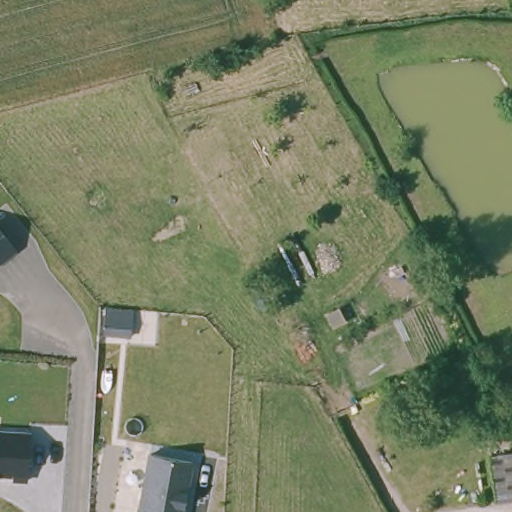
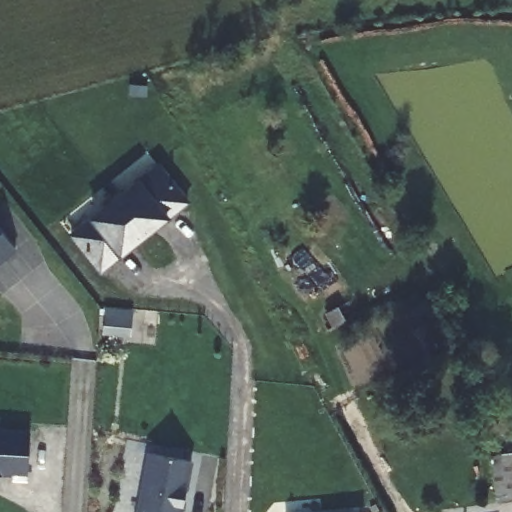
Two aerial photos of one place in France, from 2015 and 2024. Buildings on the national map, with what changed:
new [(70,241),(159,170),(190,206),(100,277),(70,241)]
unchanged [(0,263),(0,228),(17,250),(0,263)]
unchanged [(105,333),(107,316),(132,318),(132,335),(105,333)]
unchanged [(29,479),(15,478),(14,474),(0,473),(0,430),(30,430),(29,479)]
unchanged [(142,512),(152,452),(195,460),(189,490),(187,505),(185,512),(142,512)]
unchanged [(496,503),(490,455),(511,453),(512,453),(512,501),(496,503)]

